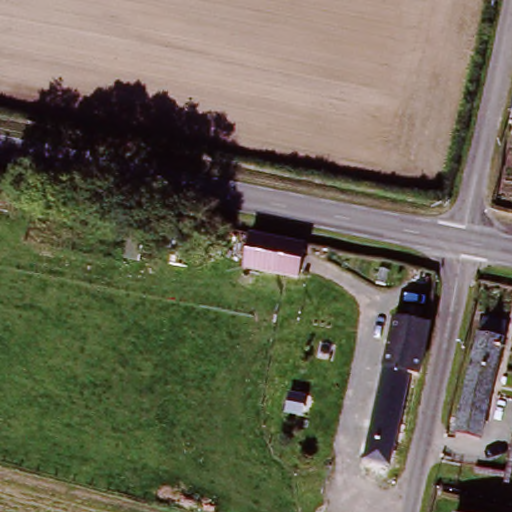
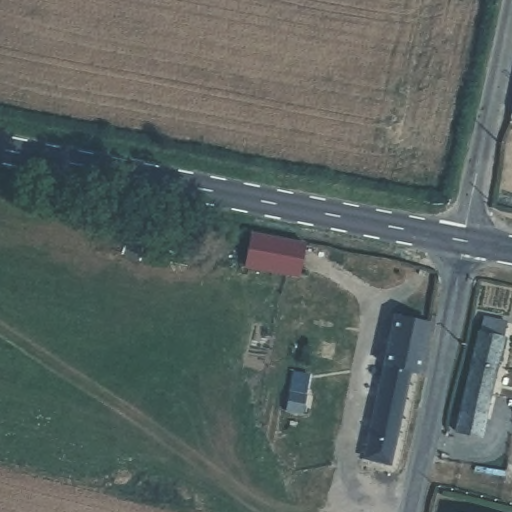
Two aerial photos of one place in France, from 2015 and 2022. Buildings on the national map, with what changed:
unchanged [(512,117),(512,122),(511,122),(512,117)]
unchanged [(320,246),(313,284),(243,270),(237,270),(245,233),(320,246)]
unchanged [(380,372),(392,320),(424,327),(413,379),(402,376),(380,372)]
unchanged [(502,337),(491,378),(475,450),(451,444),(478,332),(502,337)]
unchanged [(380,372),(402,376),(381,469),(360,463),(380,372)]

